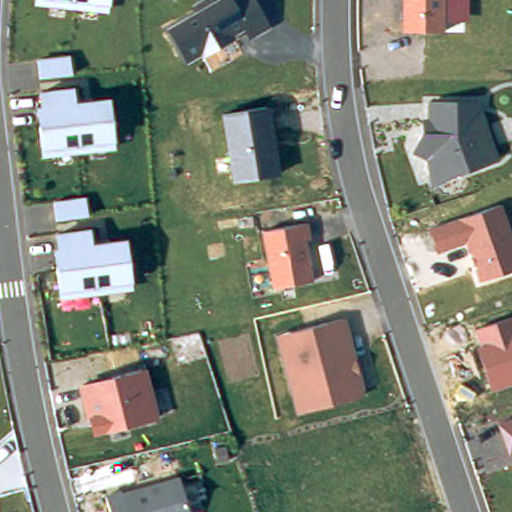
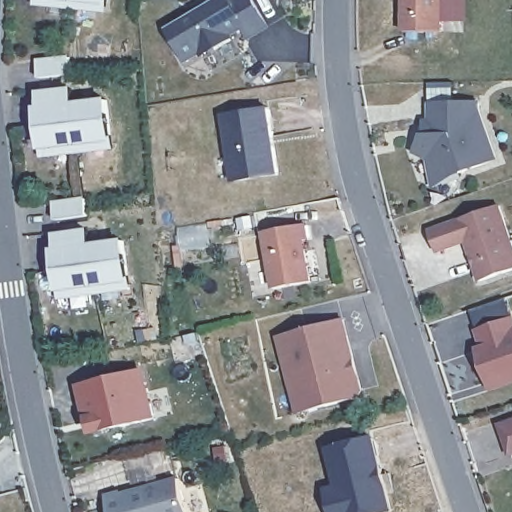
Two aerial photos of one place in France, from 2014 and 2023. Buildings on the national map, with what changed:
unchanged [(110,4),(109,11),(37,5),(37,0),(110,0),(110,4)]
unchanged [(221,0),(230,0),(247,27),(232,35),(236,41),(205,60),(200,54),(188,60),(172,30),(221,0)]
unchanged [(445,32),(402,31),(404,0),(445,0),(445,32)]
unchanged [(72,74),(40,77),(37,59),(70,55),(72,74)]
unchanged [(115,141),(116,149),(44,158),(43,150),(37,92),(74,87),(76,102),(109,97),(115,141)]
unchanged [(500,159),(432,186),(427,159),(412,153),(422,135),(422,122),(429,120),(427,102),(478,98),(500,159)]
unchanged [(232,182),(221,113),(270,106),(279,172),(232,182)]
unchanged [(57,218),(54,200),(86,195),(89,215),(57,218)]
unchanged [(512,267),(481,278),(467,240),(439,250),(430,227),(500,205),(512,239),(512,267)]
unchanged [(262,231),(309,222),(313,239),(307,240),(315,280),(273,289),(262,231)]
unchanged [(60,291),(54,234),(92,227),(93,242),(127,237),(133,282),(60,291)]
unchanged [(295,412),(276,335),(346,317),(367,392),(295,412)]
unchanged [(470,330),(512,317),(512,386),(492,392),(470,330)]
unchanged [(92,436),(79,385),(140,369),(147,370),(159,417),(92,436)]
unchanged [(500,424),(512,419),(512,455),(510,456),(500,424)]
new [(394,512),(331,512),(325,490),(335,487),(327,448),(375,437),(394,512)]
new [(147,452),(154,477),(133,482),(127,456),(147,452)]
unchanged [(113,512),(109,495),(178,478),(188,512),(113,512)]

